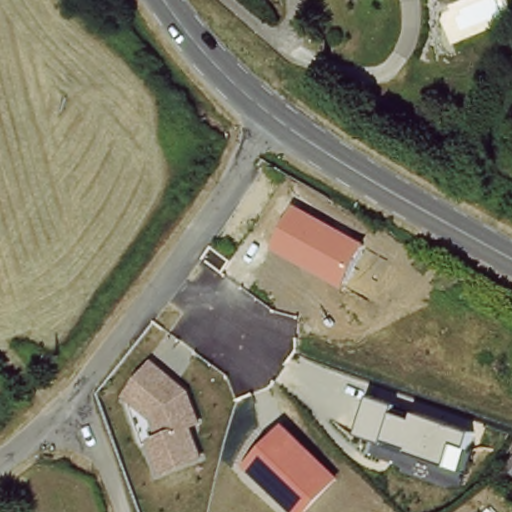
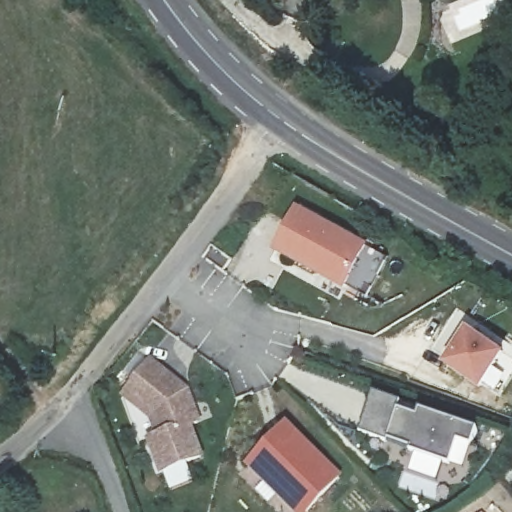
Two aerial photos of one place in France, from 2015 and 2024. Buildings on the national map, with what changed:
unchanged [(345,288),(274,250),(298,206),(369,245),(345,288)]
new [(482,387),(445,362),(470,325),(507,352),(482,387)]
unchanged [(147,437),(156,433),(150,419),(121,397),(151,357),(191,391),(203,423),(194,427),(204,460),(161,477),(147,437)]
unchanged [(400,406),(398,413),(418,421),(420,413),(479,433),(465,472),(449,467),(450,464),(362,435),(375,397),(400,406)]
unchanged [(343,478),(310,512),(294,512),(246,467),(289,425),(343,478)]
unchanged [(502,478),(512,465),(512,489),(502,478)]

